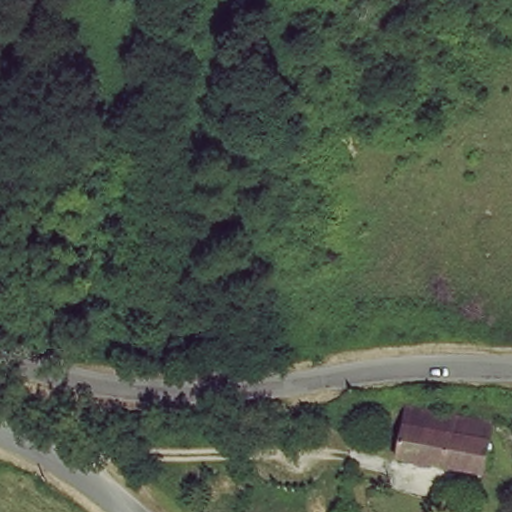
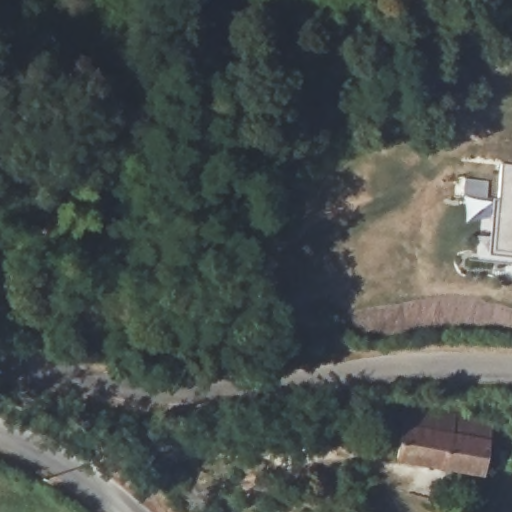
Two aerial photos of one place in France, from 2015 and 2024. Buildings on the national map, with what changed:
new [(487,254),(493,199),(497,199),(501,164),(512,165),(512,263),(490,260),(487,254)]
unchanged [(456,415),(453,433),(489,440),(483,472),(400,457),(407,408),(456,415)]

